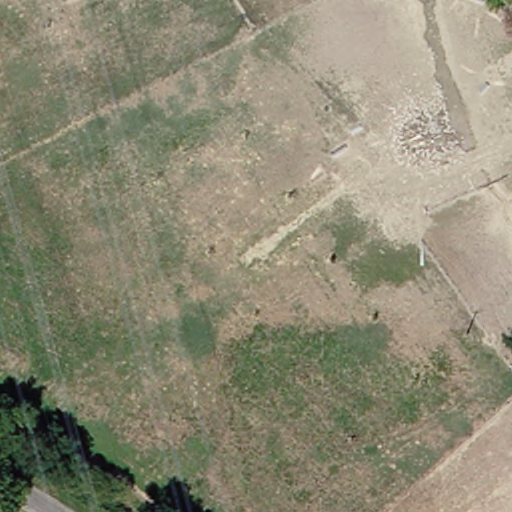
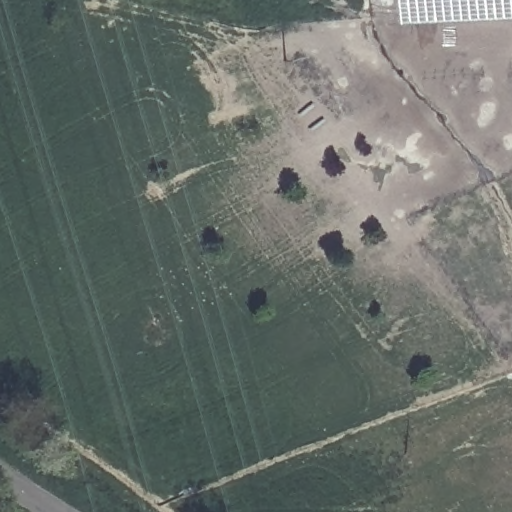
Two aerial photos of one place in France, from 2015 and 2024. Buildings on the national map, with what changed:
new [(408,23),(407,0),(512,0),(512,18),(408,23)]

